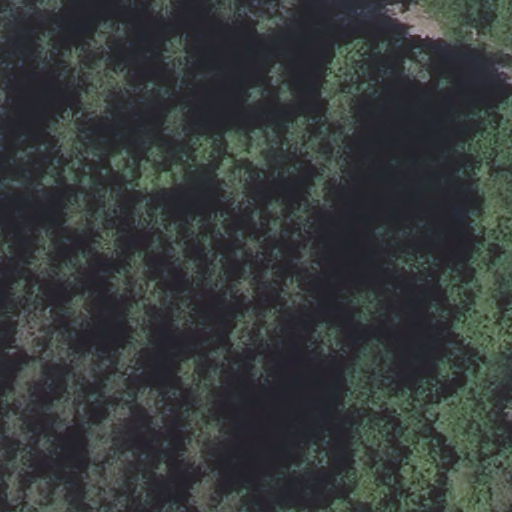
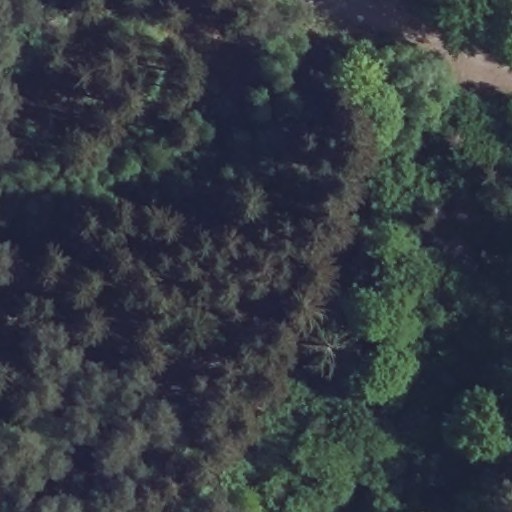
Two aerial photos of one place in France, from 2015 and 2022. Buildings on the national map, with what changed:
unchanged [(502,214),(482,242),(447,217),(465,187),(502,214)]

